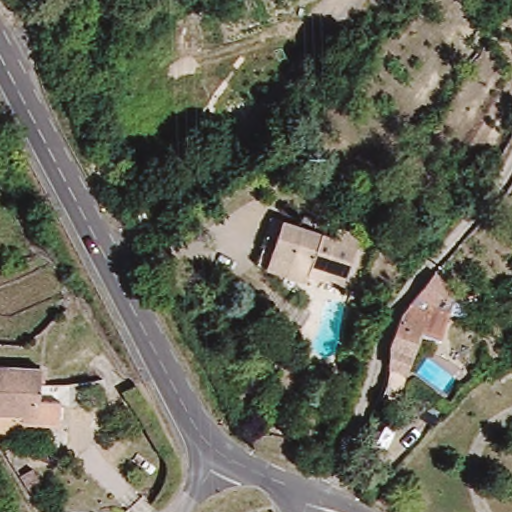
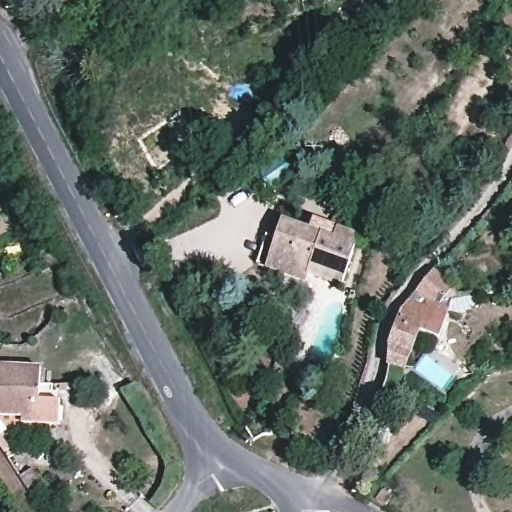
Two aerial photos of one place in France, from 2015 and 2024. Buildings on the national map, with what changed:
unchanged [(272,247),(274,243),(277,229),(282,215),(317,226),(335,232),(337,225),(359,232),(344,279),(309,267),(307,275),(259,259),(264,244),(272,247)]
unchanged [(415,295),(425,279),(448,292),(443,300),(452,297),(439,340),(419,333),(427,304),(415,295)]
unchanged [(405,311),(415,295),(427,304),(419,333),(407,361),(410,372),(406,392),(400,391),(399,397),(385,394),(385,388),(386,385),(392,360),(400,319),(405,311)]
unchanged [(25,413),(0,411),(0,358),(10,359),(29,361),(28,392),(50,393),(50,415),(25,413)]
unchanged [(29,473),(36,483),(28,487),(22,477),(29,473)]

